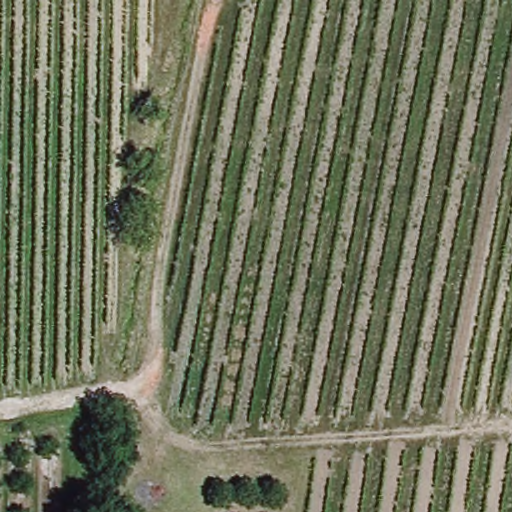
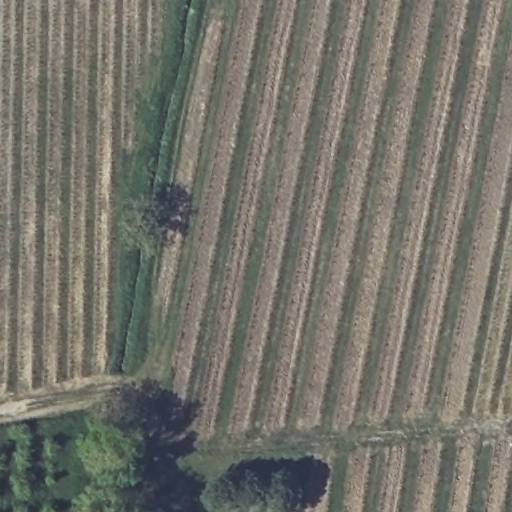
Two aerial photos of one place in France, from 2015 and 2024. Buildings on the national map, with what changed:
[]

